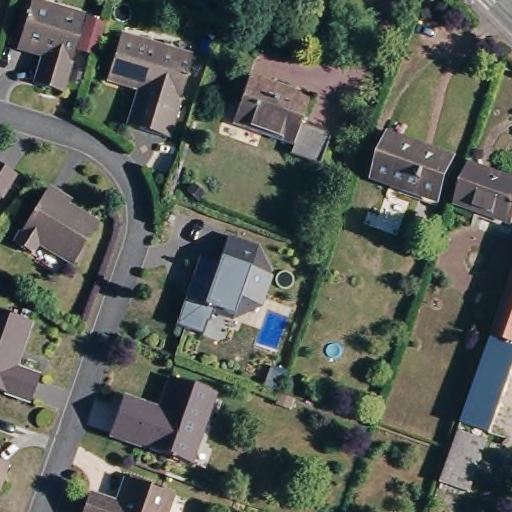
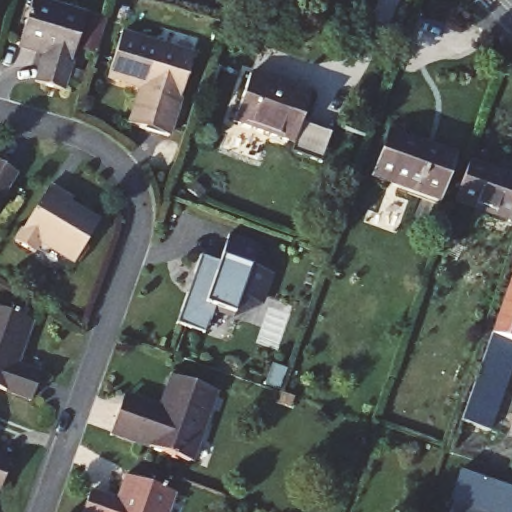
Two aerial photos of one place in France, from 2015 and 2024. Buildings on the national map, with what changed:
unchanged [(84,16),(60,91),(33,83),(42,56),(15,48),(30,0),(31,0),(84,16)]
unchanged [(138,83),(105,73),(120,29),(192,52),(166,132),(138,124),(127,120),(138,83)]
unchanged [(309,91),(299,117),(330,129),(319,160),(288,149),(292,139),(230,117),(249,69),(309,91)]
unchanged [(436,199),(371,175),(387,134),(452,157),(436,199)]
unchanged [(512,178),(512,217),(510,222),(451,202),(465,162),(512,178)]
unchanged [(0,195),(0,165),(14,173),(0,195)]
unchanged [(72,263),(38,242),(31,254),(11,242),(47,186),(62,196),(67,199),(65,203),(97,223),(72,263)]
unchanged [(259,295),(246,290),(240,293),(232,314),(213,307),(208,321),(207,321),(202,334),(175,324),(185,294),(187,294),(195,273),(192,273),(198,256),(217,263),(227,234),(257,244),(255,250),(257,256),(261,254),(269,271),(265,272),(267,274),(259,295)]
unchanged [(512,345),(492,338),(483,335),(506,269),(512,253),(512,344),(512,345)]
unchanged [(38,370),(29,396),(0,386),(0,306),(29,316),(12,361),(38,370)]
unchanged [(481,432),(452,422),(483,335),(492,338),(512,345),(481,432)]
unchanged [(217,391),(193,461),(112,434),(122,407),(126,396),(163,408),(175,377),(217,391)]
unchanged [(0,482),(0,459),(7,461),(0,482)]
new [(512,490),(512,512),(446,512),(459,472),(512,490)]
unchanged [(80,512),(87,493),(115,503),(125,477),(172,494),(165,512),(80,512)]

